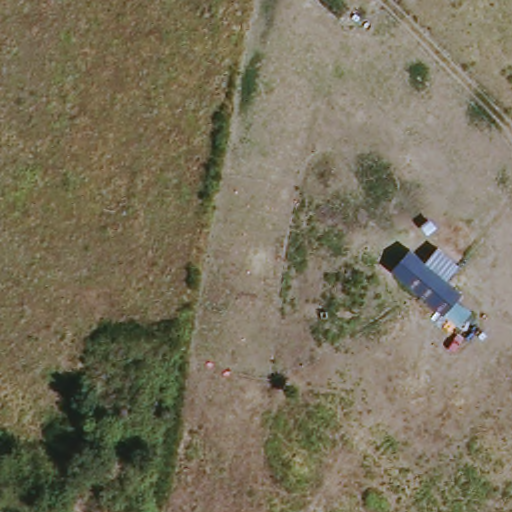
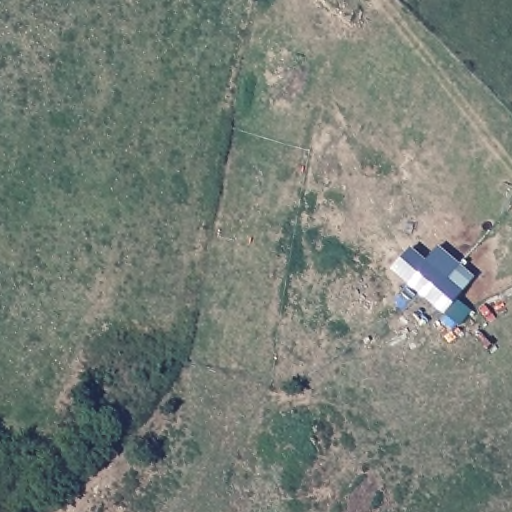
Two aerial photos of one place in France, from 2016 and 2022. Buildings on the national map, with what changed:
unchanged [(469,293),(451,317),(386,265),(402,245),(469,293)]

